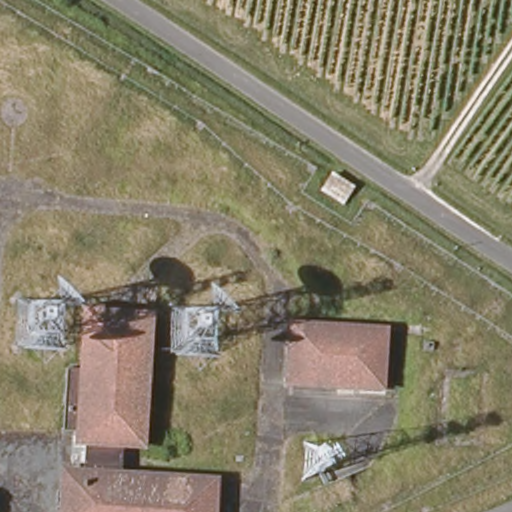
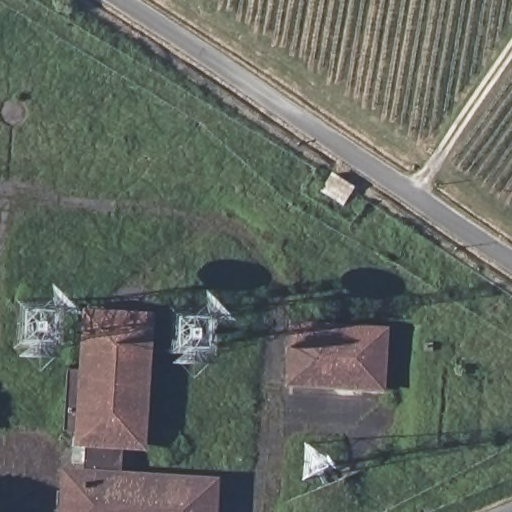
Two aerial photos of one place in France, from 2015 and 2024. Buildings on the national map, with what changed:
unchanged [(58,512),(61,466),(71,466),(74,446),(84,309),(155,315),(150,451),(131,450),(129,477),(223,483),(220,512),(58,512)]
unchanged [(289,387),(292,320),(389,325),(384,390),(289,387)]

